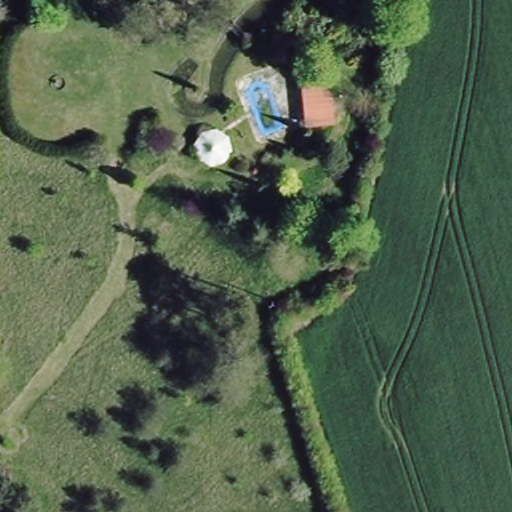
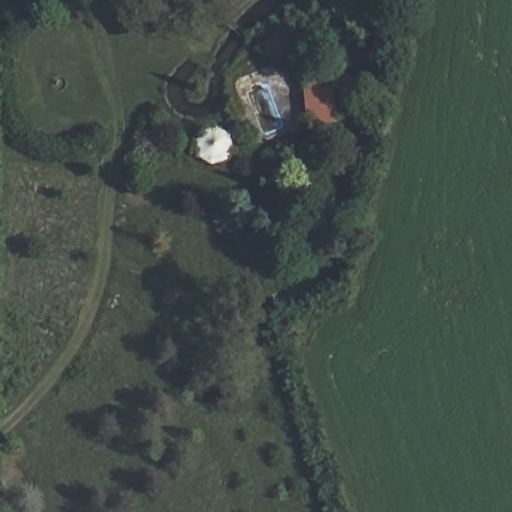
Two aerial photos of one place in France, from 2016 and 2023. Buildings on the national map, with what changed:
unchanged [(303,61),(332,62),(333,127),(304,128),(303,61)]

